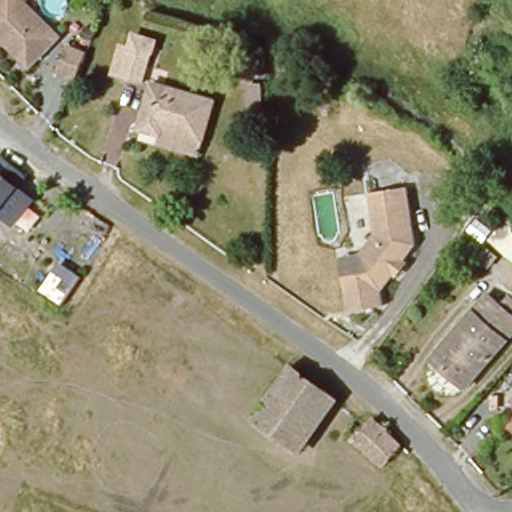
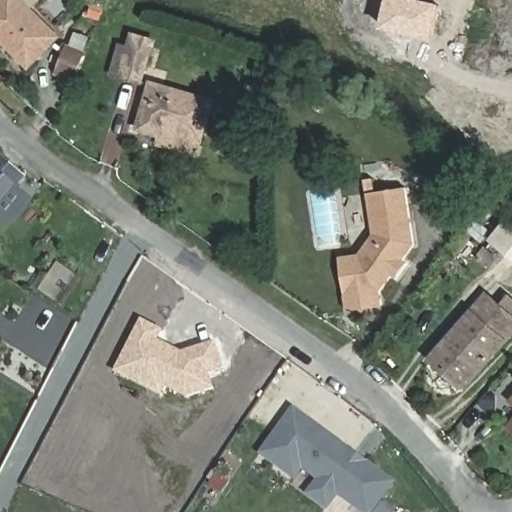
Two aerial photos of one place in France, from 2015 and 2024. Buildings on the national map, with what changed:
unchanged [(0,39),(0,1),(1,0),(19,0),(57,37),(28,66),(0,39)]
new [(433,40),(381,30),(387,0),(422,0),(441,5),(433,40)]
unchanged [(142,87),(123,82),(123,80),(114,77),(121,51),(132,55),(135,46),(152,51),(142,87)]
unchanged [(56,72),(65,50),(84,57),(75,78),(74,80),(56,72)]
unchanged [(203,145),(166,135),(164,140),(140,134),(152,90),(214,107),(203,145)]
unchanged [(0,211),(0,160),(25,180),(0,211)]
unchanged [(372,237),(365,196),(402,190),(412,247),(378,292),(381,308),(347,314),(341,278),(337,260),(357,257),(372,237)]
demolished [(22,261),(2,244),(11,234),(31,251),(22,261)]
unchanged [(64,269),(75,277),(62,295),(51,286),(64,269)]
unchanged [(510,293),(512,295),(512,341),(467,392),(431,360),(491,295),(502,304),(510,293)]
new [(166,330),(159,340),(183,352),(215,340),(224,367),(210,372),(216,389),(188,398),(168,387),(164,397),(114,372),(142,317),(166,330)]
demolished [(299,453),(254,420),(290,370),(334,403),(299,453)]
new [(386,500),(397,508),(395,512),(364,512),(340,495),(329,508),(305,488),(315,477),(305,468),(295,481),(258,452),(295,406),(397,483),(386,500)]
demolished [(382,465),(353,440),(371,421),(398,446),(382,465)]

